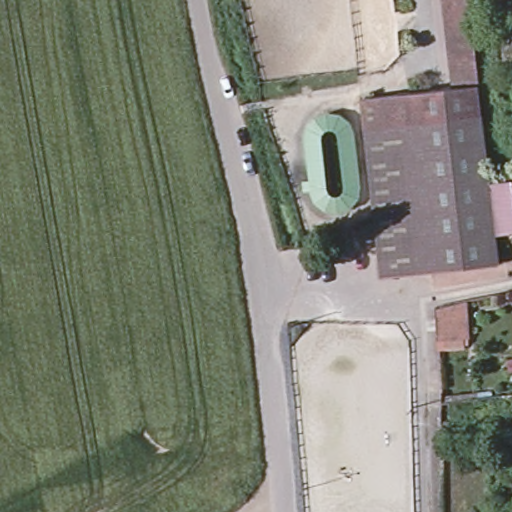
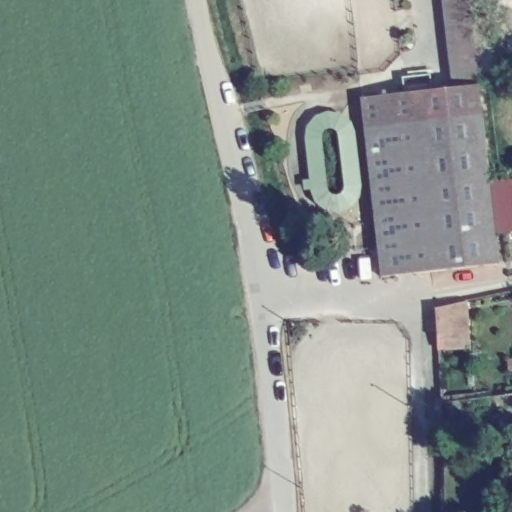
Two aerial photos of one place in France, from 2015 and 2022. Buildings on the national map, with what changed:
unchanged [(458,87),(448,0),(466,0),(476,85),(458,87)]
unchanged [(361,115),(361,98),(458,87),(476,85),(480,115),(363,129),(361,115)]
unchanged [(480,115),(497,264),(380,277),(363,129),(480,115)]
unchanged [(467,338),(435,341),(433,308),(465,301),(467,338)]

